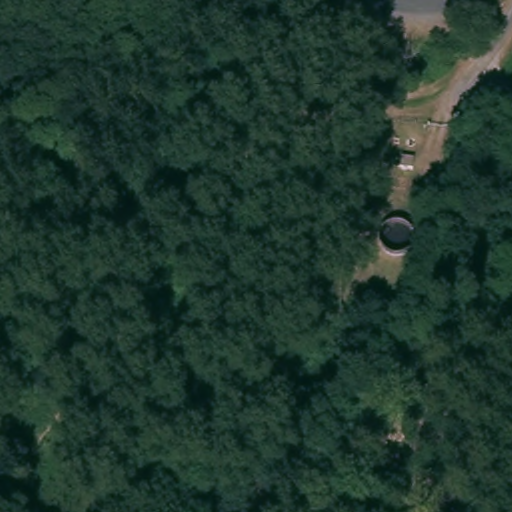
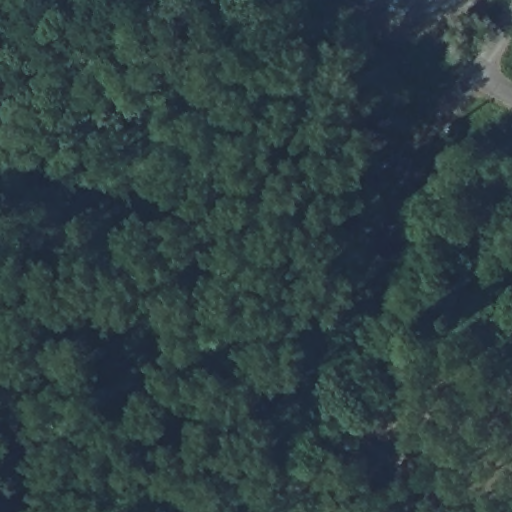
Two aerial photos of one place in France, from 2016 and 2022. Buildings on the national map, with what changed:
[]

